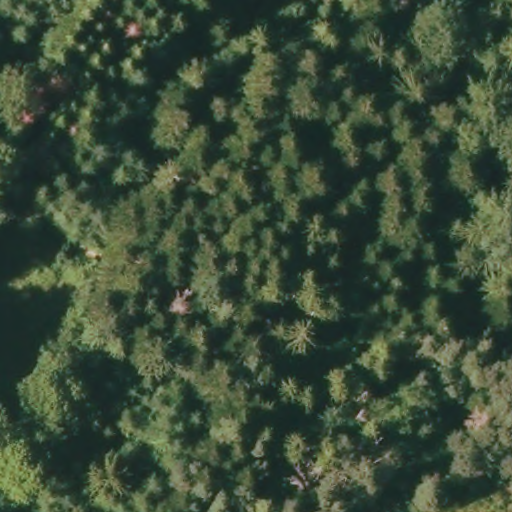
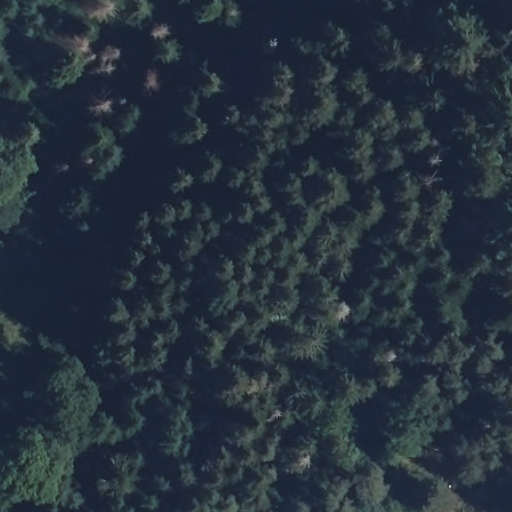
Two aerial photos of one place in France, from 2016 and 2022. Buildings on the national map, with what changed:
[]

